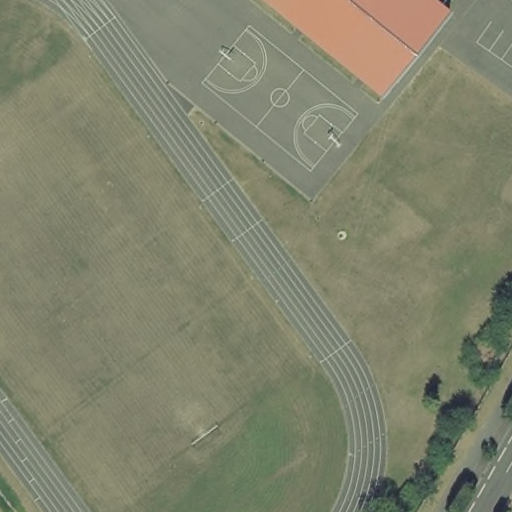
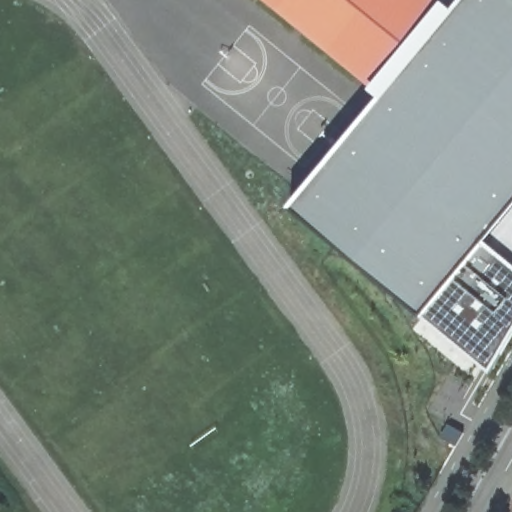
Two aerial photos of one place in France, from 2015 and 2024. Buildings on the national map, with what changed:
new [(443,5),(378,86),(362,74),(359,77),(352,71),(354,68),(301,25),(298,27),(292,22),(294,19),(271,0),(438,0),(443,5)]
demolished [(378,79),(277,0),(436,0),(378,79)]
new [(461,0),(512,0),(512,335),(490,372),(423,316),(289,205),(461,0)]
new [(449,424),(463,432),(456,445),(441,437),(449,424)]

